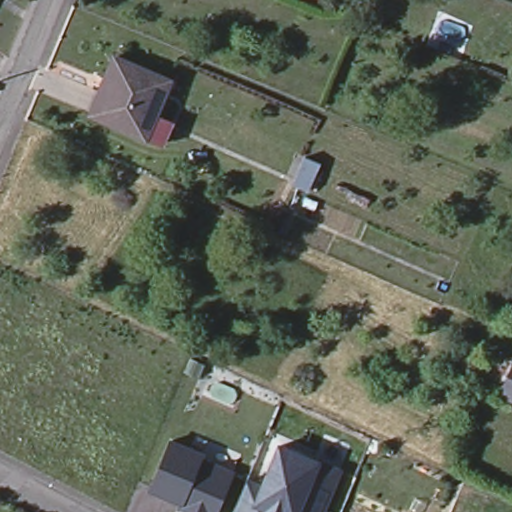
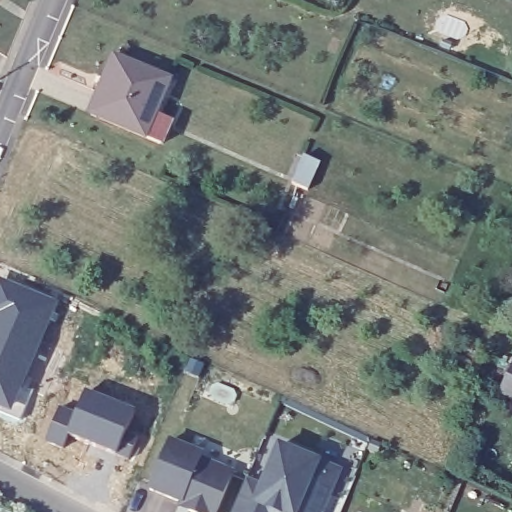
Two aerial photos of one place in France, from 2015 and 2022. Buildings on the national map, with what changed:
unchanged [(173,83),(150,139),(100,118),(110,93),(105,90),(117,60),(173,83)]
unchanged [(301,197),(287,190),(301,157),(317,165),(301,197)]
new [(22,312),(42,321),(16,382),(30,388),(17,418),(0,410),(0,317),(17,324),(22,312)]
unchanged [(499,395),(512,366),(512,401),(499,395)]
new [(134,410),(125,432),(138,439),(129,460),(67,433),(64,446),(45,441),(60,407),(75,413),(83,389),(134,410)]
unchanged [(205,442),(237,455),(230,474),(214,512),(184,512),(177,508),(178,504),(147,491),(167,442),(200,456),(205,442)]
unchanged [(337,471),(321,512),(232,512),(242,486),(243,482),(260,489),(277,447),(337,471)]

